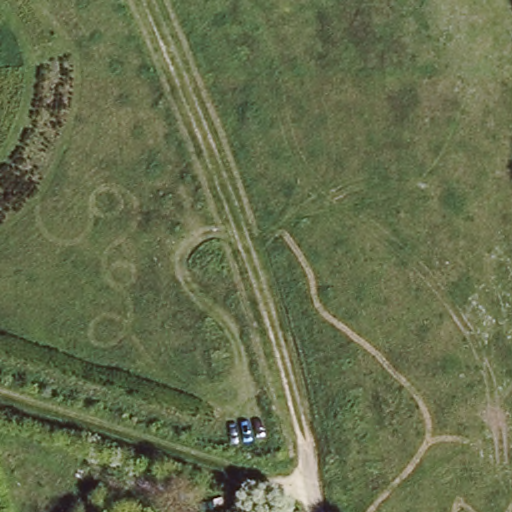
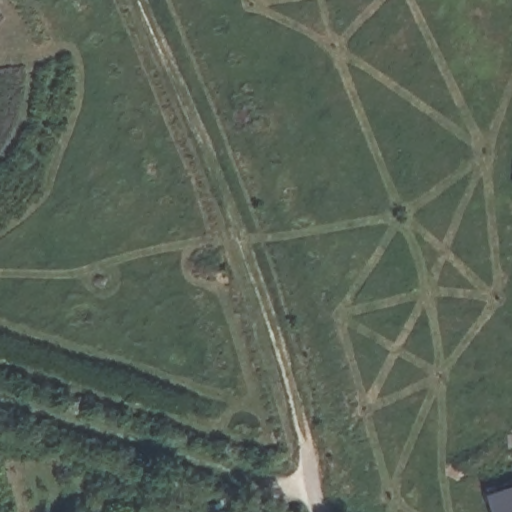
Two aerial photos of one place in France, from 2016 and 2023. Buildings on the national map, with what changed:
new [(490,488),(512,481),(512,512),(497,512),(490,488)]

